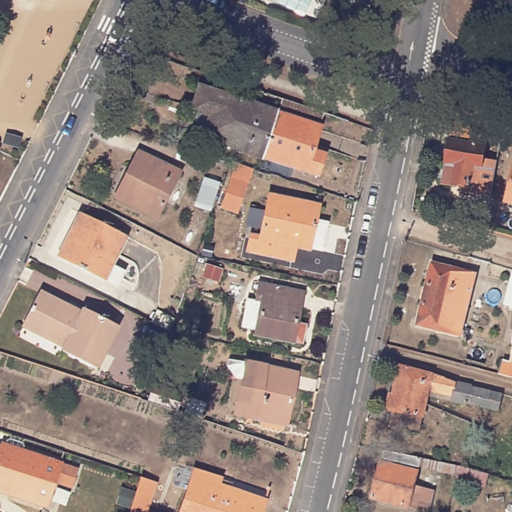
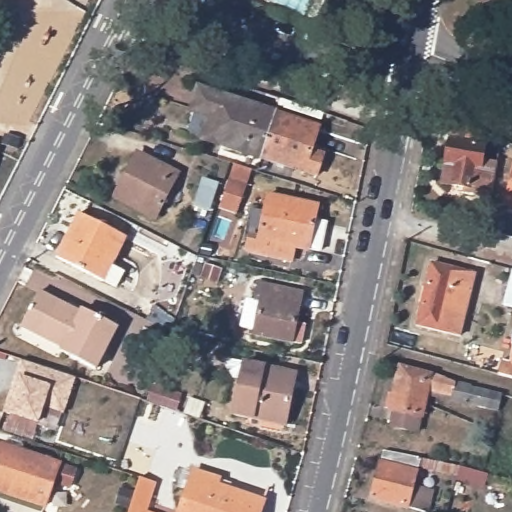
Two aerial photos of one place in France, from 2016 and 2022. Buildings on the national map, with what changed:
unchanged [(319,140),(332,145),(325,165),(217,129),(223,109),(199,101),(207,77),(327,116),(319,140)]
unchanged [(489,194),(462,188),(463,182),(441,178),(452,116),(480,127),(478,141),(482,141),(481,154),(496,156),(489,194)]
unchanged [(154,217),(113,197),(135,153),(177,174),(154,217)]
unchanged [(512,175),(512,209),(504,207),(512,175)]
unchanged [(249,182),(239,211),(224,205),(228,194),(234,177),(249,182)]
unchanged [(249,225),(258,227),(267,185),(315,195),(305,239),(292,237),(289,249),(246,241),(249,225)]
unchanged [(110,287),(98,280),(51,258),(73,212),(120,236),(105,264),(119,271),(110,287)]
unchanged [(430,263),(473,273),(458,334),(415,324),(430,263)]
unchanged [(258,329),(244,326),(250,298),(264,301),(265,299),(260,298),(263,284),(305,293),(299,323),(309,325),(305,344),(296,342),(257,334),(258,329)]
unchanged [(512,289),(512,307),(507,305),(512,289)]
unchanged [(59,351),(62,347),(19,325),(37,291),(79,312),(81,308),(116,325),(95,369),(59,351)]
new [(20,360),(74,377),(62,413),(43,407),(37,423),(3,412),(20,360)]
unchanged [(506,360),(512,362),(512,377),(501,374),(506,360)]
unchanged [(287,423),(282,428),(265,425),(263,419),(237,413),(247,362),(297,373),(287,423)]
unchanged [(424,417),(420,432),(392,425),(396,410),(392,409),(402,364),(424,368),(444,375),(463,382),(505,392),(502,411),(455,400),(431,394),(426,417),(424,417)]
unchanged [(70,483),(57,479),(48,505),(0,490),(0,446),(5,447),(5,445),(75,468),(70,483)]
unchanged [(431,494),(426,512),(406,512),(370,502),(382,455),(419,462),(412,489),(431,494)]
unchanged [(482,490),(455,482),(456,479),(425,473),(427,463),(458,469),(486,477),(482,490)]
unchanged [(191,494),(184,492),(190,473),(197,475),(223,485),(221,490),(266,505),(264,512),(185,512),(191,494)]
unchanged [(150,510),(156,512),(132,512),(143,477),(159,482),(150,510)]

